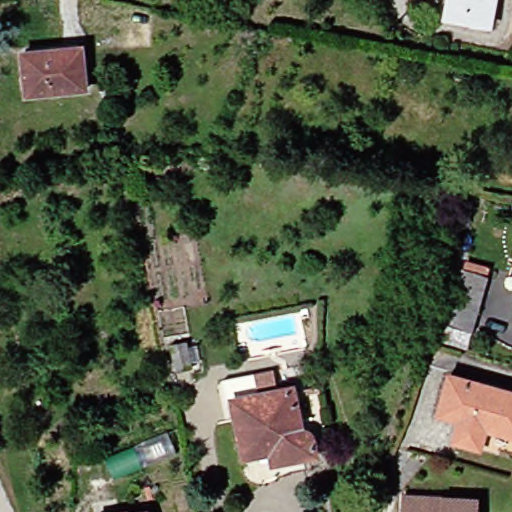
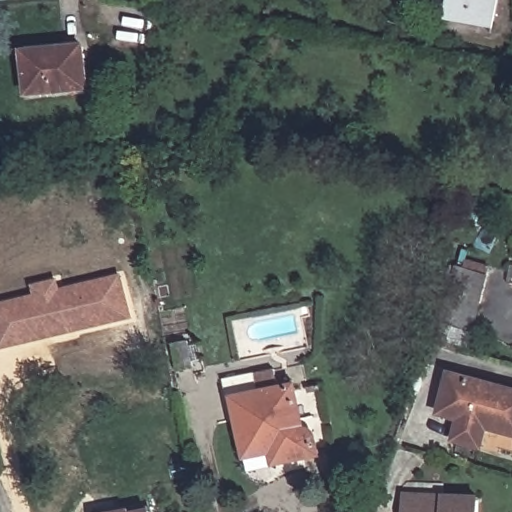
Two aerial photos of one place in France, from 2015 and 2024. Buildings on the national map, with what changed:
unchanged [(454,0),(501,0),(496,29),(451,20),(454,0)]
unchanged [(83,47),(87,91),(29,96),(25,52),(83,47)]
unchanged [(467,345),(440,336),(460,269),(487,277),(467,345)]
new [(30,284),(57,278),(60,288),(121,272),(132,317),(0,349),(0,302),(32,294),(30,284)]
unchanged [(193,367),(177,370),(172,344),(187,341),(193,367)]
unchanged [(279,370),(283,391),(301,387),(308,428),(312,429),(316,431),(318,434),(320,437),(321,441),(324,455),(281,463),(278,453),(250,457),(239,399),(233,400),(229,380),(259,374),(279,370)]
unchanged [(512,390),(512,432),(493,427),(488,447),(461,440),(466,419),(445,414),(456,374),(512,390)]
unchanged [(477,512),(406,512),(407,504),(407,495),(443,496),(477,498),(477,512)]

